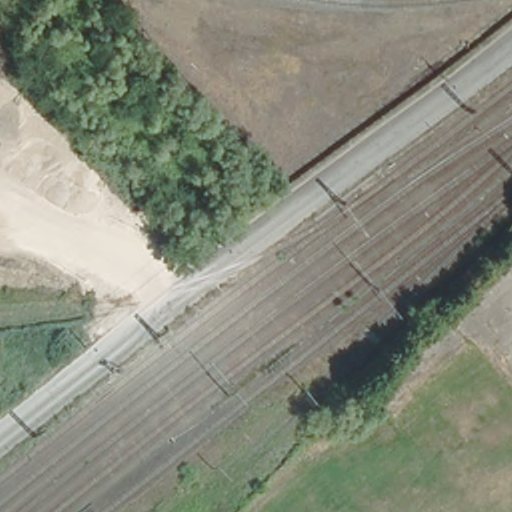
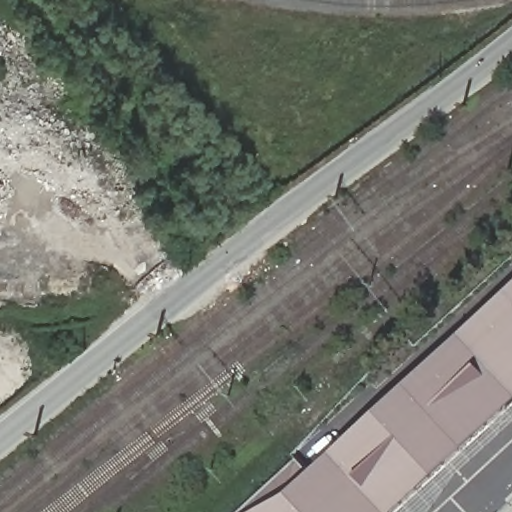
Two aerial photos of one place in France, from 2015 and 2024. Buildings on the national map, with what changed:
new [(512,280),(512,403),(394,512),(244,512),(286,487),(512,280)]
demolished [(41,337),(45,348),(34,352),(29,341),(41,337)]

